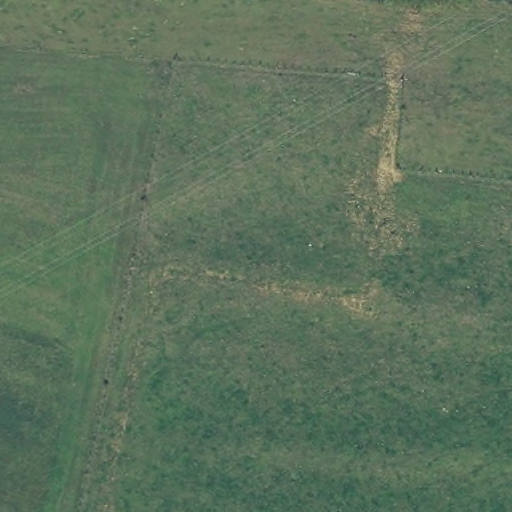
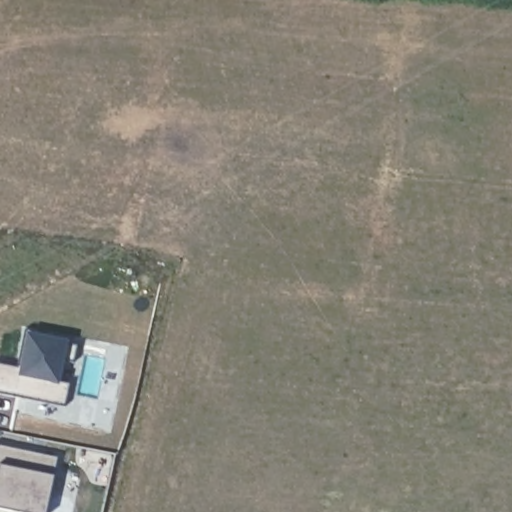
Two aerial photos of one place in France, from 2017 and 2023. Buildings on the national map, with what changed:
new [(27,335),(32,335),(31,340),(81,347),(78,365),(65,363),(62,384),(75,385),(71,403),(22,398),(22,400),(0,397),(0,366),(22,369),(27,335)]
new [(61,462),(57,481),(50,512),(0,512),(0,450),(49,460),(61,462)]

